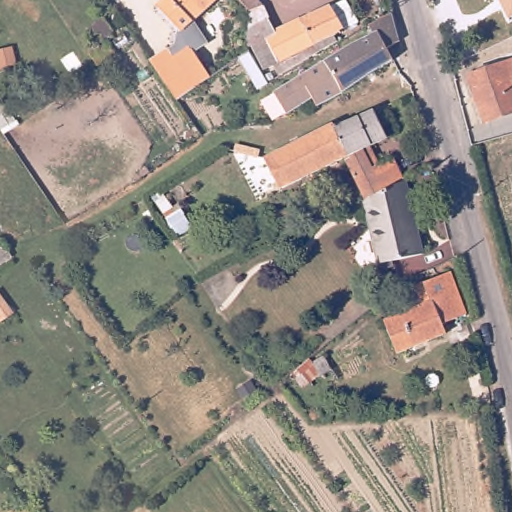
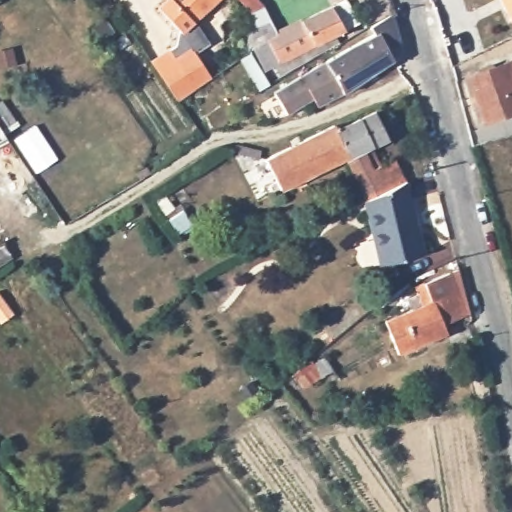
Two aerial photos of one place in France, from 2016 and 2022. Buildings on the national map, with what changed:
unchanged [(162,9),(172,0),(222,0),(185,34),(162,9)]
unchanged [(255,12),(243,0),(261,0),(267,6),(255,12)]
unchanged [(498,0),(512,0),(512,18),(507,20),(498,0)]
unchanged [(280,75),(273,63),(264,67),(253,47),(248,48),(247,45),(248,30),(269,21),(276,34),(346,1),(358,23),(315,44),(319,52),(280,75)]
unchanged [(382,34),(377,25),(397,14),(401,25),(405,41),(392,49),(398,61),(323,106),(319,100),(293,114),(280,90),(361,44),(382,34)]
unchanged [(135,39),(97,64),(92,56),(129,30),(135,39)]
unchanged [(169,50),(175,58),(189,49),(209,78),(177,100),(150,62),(169,50)]
unchanged [(250,50),(268,81),(257,88),(239,58),(250,50)]
unchanged [(512,74),(512,117),(485,127),(468,80),(510,67),(512,74)]
unchanged [(197,102),(212,124),(200,134),(184,111),(197,102)]
unchanged [(363,184),(352,163),(286,195),(271,164),(339,130),(341,134),(379,116),(392,144),(367,156),(377,174),(397,164),(407,189),(373,206),(363,184)]
unchanged [(373,206),(407,189),(410,188),(428,260),(386,272),(370,207),(373,206)]
unchanged [(2,244),(11,258),(0,265),(0,245),(2,244)]
unchanged [(416,317),(412,306),(422,302),(420,294),(456,281),(471,319),(448,329),(451,339),(405,358),(392,327),(416,317)]

